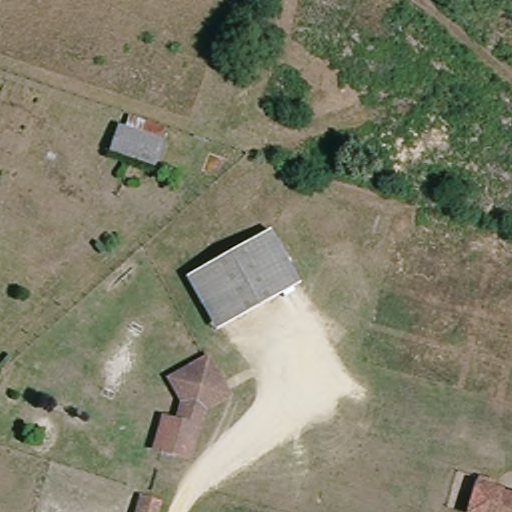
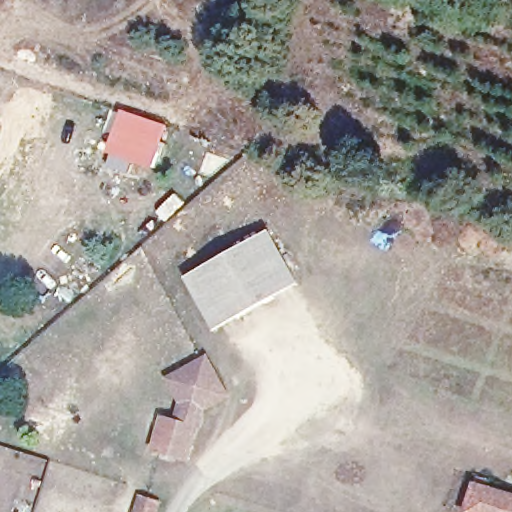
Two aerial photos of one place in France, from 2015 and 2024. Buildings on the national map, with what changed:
unchanged [(164,142),(159,164),(110,151),(117,127),(164,142)]
unchanged [(250,244),(274,230),(303,288),(278,299),(250,244)]
unchanged [(204,305),(189,278),(250,244),(278,299),(242,318),(220,329),(204,305)]
unchanged [(192,410),(176,460),(145,452),(156,411),(176,416),(167,376),(204,357),(214,384),(219,399),(204,406),(192,410)]
unchanged [(481,483),(512,493),(512,512),(475,512),(481,483)]
unchanged [(139,492),(161,502),(159,512),(133,512),(139,492)]

